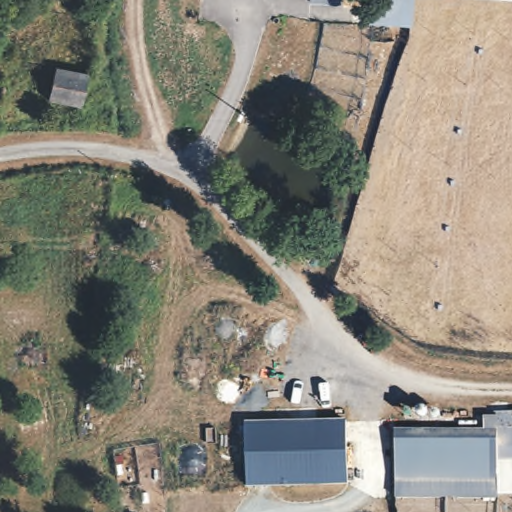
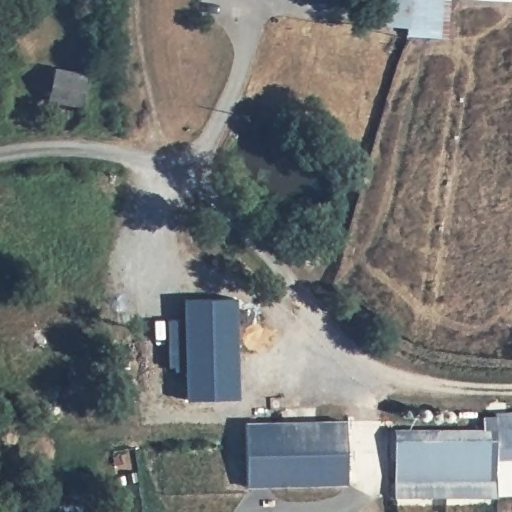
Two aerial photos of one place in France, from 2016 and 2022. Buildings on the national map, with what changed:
unchanged [(369,23),(366,22),(368,14),(370,0),(410,0),(404,29),(369,23)]
unchanged [(431,0),(442,0),(442,2),(431,0)]
unchanged [(508,0),(507,7),(442,2),(442,0),(508,0)]
unchanged [(87,73),(83,104),(46,100),(51,67),(87,73)]
new [(185,370),(175,371),(175,366),(169,366),(168,319),(185,317),(184,300),(236,298),(238,397),(186,399),(185,370)]
unchanged [(512,413),(512,497),(492,497),(492,482),(492,431),(485,431),(486,413),(512,413)]
unchanged [(348,421),(350,483),(249,485),(247,422),(348,421)]
unchanged [(485,431),(492,431),(492,482),(397,481),(397,430),(485,431)]
unchanged [(397,481),(492,482),(492,497),(397,497),(397,481)]

